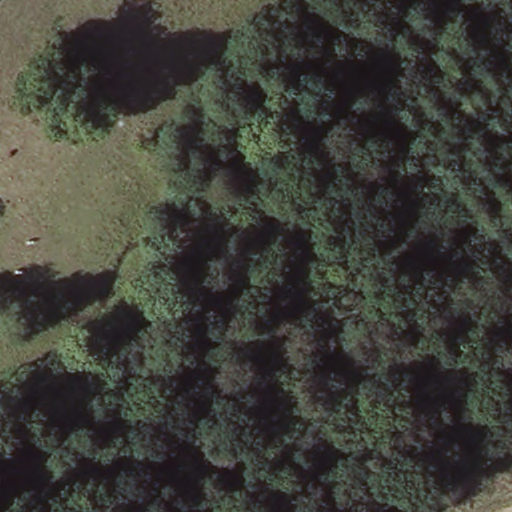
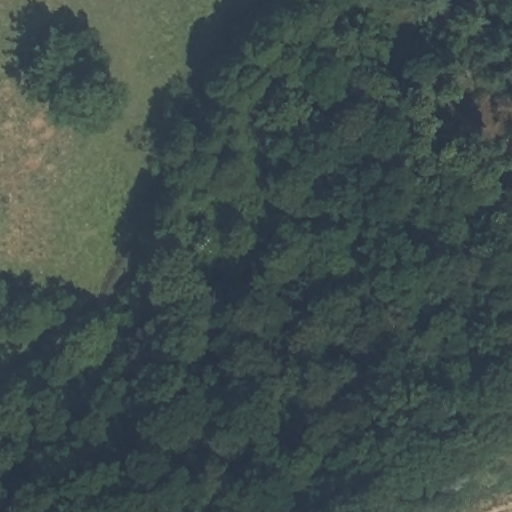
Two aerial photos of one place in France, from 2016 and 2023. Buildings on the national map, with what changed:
[]

